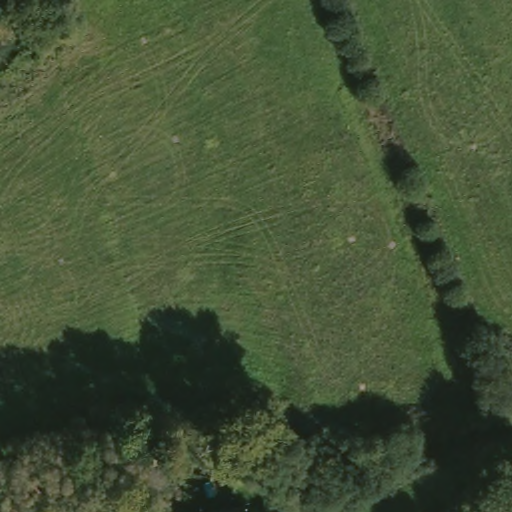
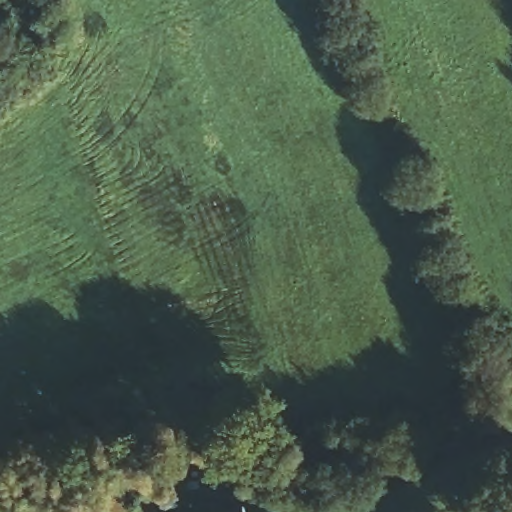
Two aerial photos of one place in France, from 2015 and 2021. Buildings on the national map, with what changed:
unchanged [(247,512),(234,512),(246,510),(247,512)]

